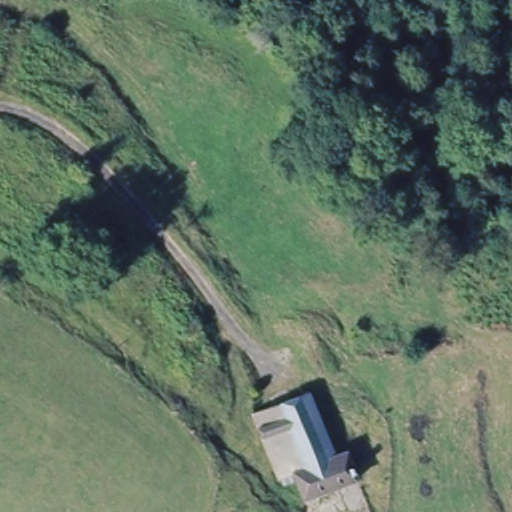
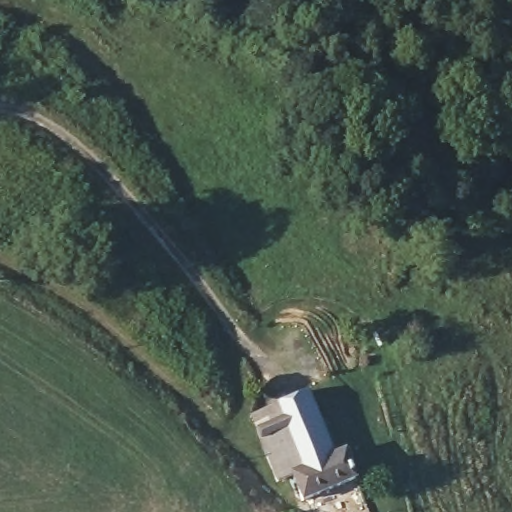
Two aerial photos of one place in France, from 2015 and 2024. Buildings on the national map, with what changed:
unchanged [(253,415),(310,392),(344,464),(357,461),(365,480),(313,503),(300,483),(286,483),(255,419),(253,415)]

